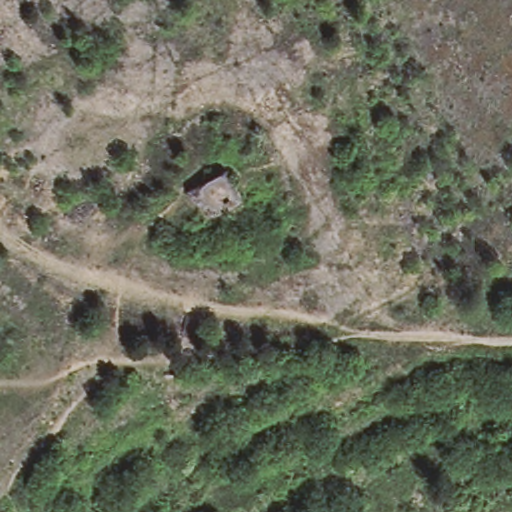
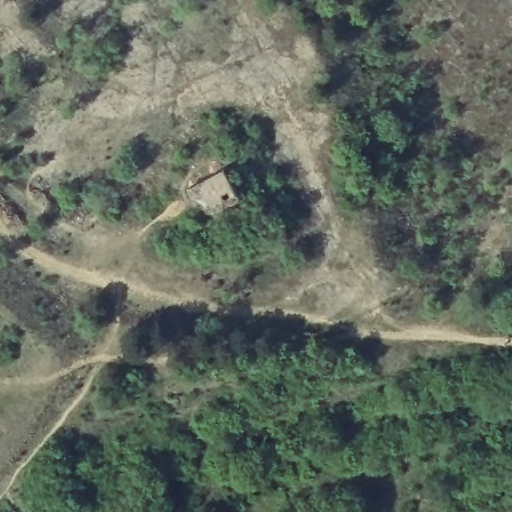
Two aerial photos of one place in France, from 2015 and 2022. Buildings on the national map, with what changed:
unchanged [(227,162),(245,191),(217,207),(199,178),(227,162)]

